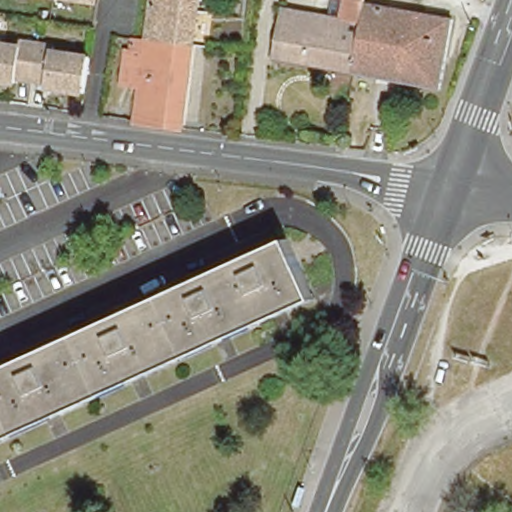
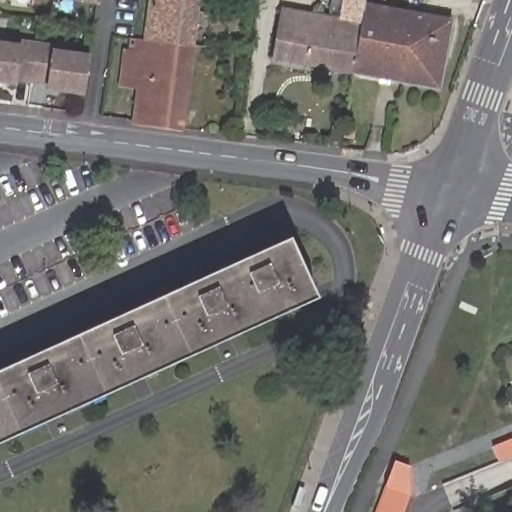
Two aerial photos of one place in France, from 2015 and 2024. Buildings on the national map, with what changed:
unchanged [(50,0),(102,0),(101,8),(50,0)]
unchanged [(150,36),(155,0),(204,0),(198,44),(150,36)]
unchanged [(284,8),(333,16),(336,0),(365,0),(364,3),(362,16),(351,71),(274,59),(284,8)]
unchanged [(362,16),(364,3),(450,20),(438,86),(351,71),(362,16)]
unchanged [(138,121),(141,100),(121,97),(127,60),(133,61),(136,39),(149,40),(150,36),(198,44),(187,127),(138,121)]
unchanged [(22,52),(23,47),(39,50),(34,85),(18,83),(17,88),(0,86),(0,49),(22,52)]
unchanged [(88,79),(85,98),(68,95),(48,92),(49,87),(34,85),(39,50),(55,51),(54,56),(73,59),(91,62),(88,79)]
unchanged [(312,291),(0,432),(0,364),(287,236),(312,291)]
new [(409,466),(412,489),(403,512),(376,512),(395,461),(409,466)]

